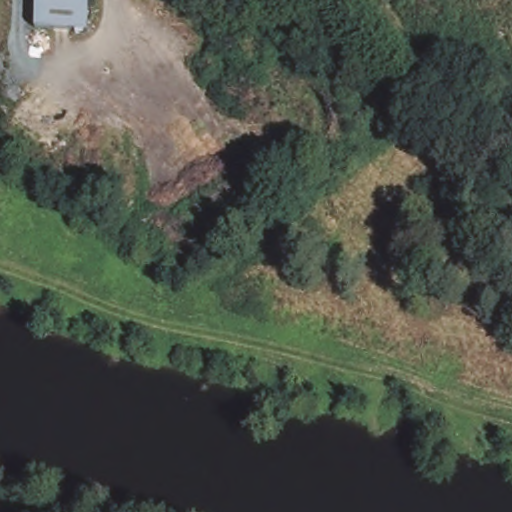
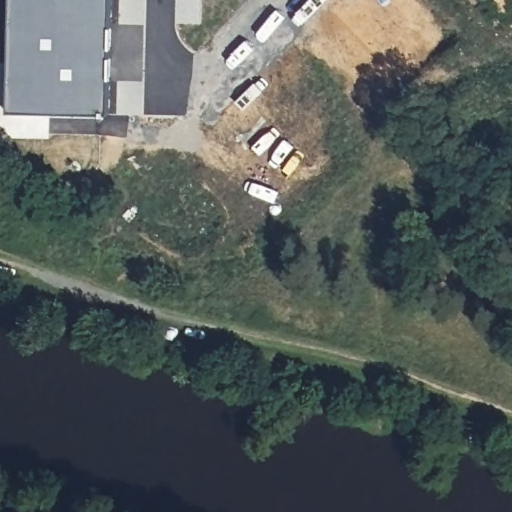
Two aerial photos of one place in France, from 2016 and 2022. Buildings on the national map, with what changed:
new [(5,110),(7,0),(110,0),(108,112),(5,110)]
demolished [(33,0),(84,0),(84,29),(32,27),(33,0)]

